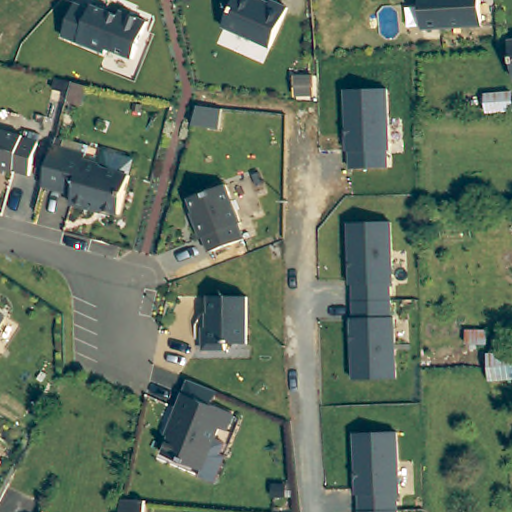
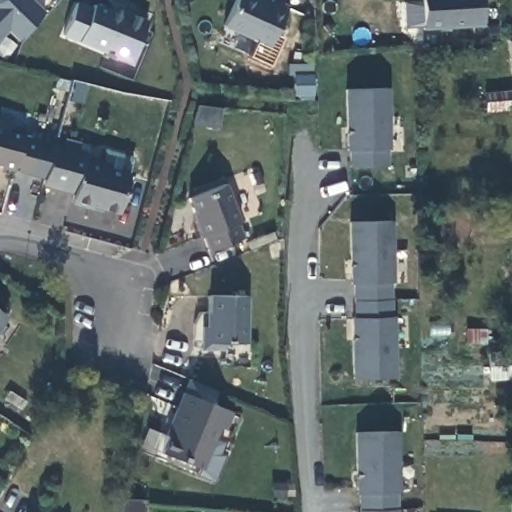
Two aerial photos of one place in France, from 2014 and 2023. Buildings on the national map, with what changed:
new [(18,40),(9,32),(0,40),(0,0),(31,0),(44,12),(18,40)]
unchanged [(222,26),(233,0),(259,0),(268,4),(270,0),(271,0),(287,7),(268,47),(222,26)]
unchanged [(478,0),(480,23),(420,27),(418,0),(478,0)]
unchanged [(74,3),(90,10),(91,6),(117,16),(119,12),(145,22),(130,60),(105,49),(103,54),(60,36),(74,3)]
unchanged [(512,58),(509,36),(512,35),(512,58)]
unchanged [(345,149),(342,149),(341,87),(382,86),(384,147),(381,147),(382,165),(345,166),(345,149)]
unchanged [(510,92),(512,109),(486,112),(485,95),(510,92)]
unchanged [(26,171),(0,166),(0,128),(33,137),(26,171)]
unchanged [(70,203),(71,197),(39,190),(49,149),(80,156),(79,162),(96,165),(99,151),(128,157),(124,173),(116,213),(70,203)]
unchanged [(239,224),(236,225),(242,239),(206,253),(201,237),(199,239),(193,222),(195,222),(187,199),(224,185),(239,224)]
unchanged [(349,317),(351,317),(350,284),(348,284),(346,222),(388,221),(389,283),(387,283),(388,317),(390,317),(392,378),(351,380),(349,317)]
unchanged [(244,342),(223,342),(223,349),(200,348),(201,326),(207,326),(207,294),(245,295),(244,342)]
unchanged [(0,319),(0,306),(6,310),(0,319)]
unchanged [(512,356),(512,381),(487,381),(487,356),(512,356)]
unchanged [(215,447),(220,450),(209,476),(194,469),(195,465),(158,448),(169,421),(166,420),(180,388),(228,409),(220,426),(213,423),(209,434),(219,438),(215,447)]
unchanged [(356,496),(354,496),(353,459),(352,435),(394,433),(394,458),(395,495),(393,495),(393,512),(356,512),(356,496)]
unchanged [(148,493),(146,512),(121,512),(124,491),(148,493)]
unchanged [(45,508),(53,512),(43,512),(45,508)]

